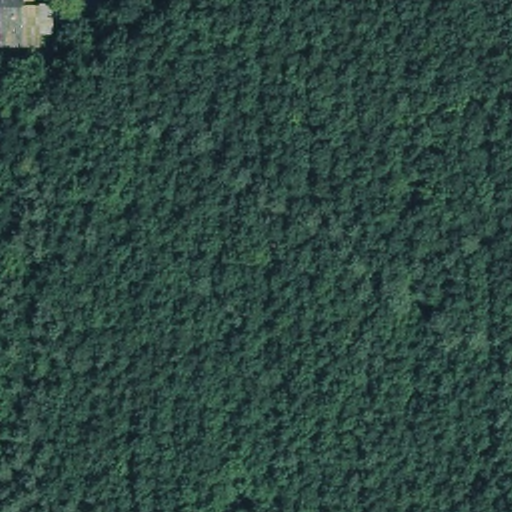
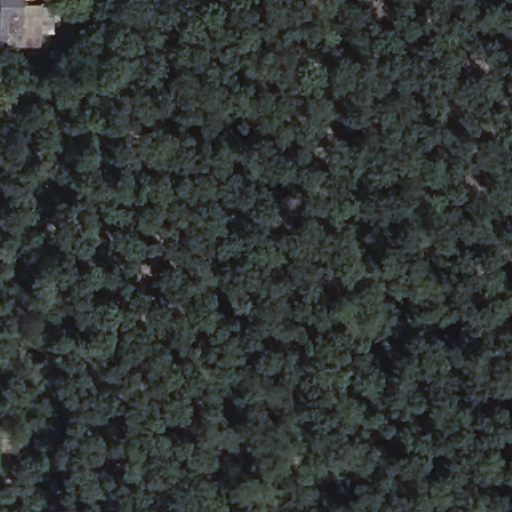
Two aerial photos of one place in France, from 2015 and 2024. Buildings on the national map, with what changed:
unchanged [(23,57),(4,57),(4,0),(21,0),(23,57)]

